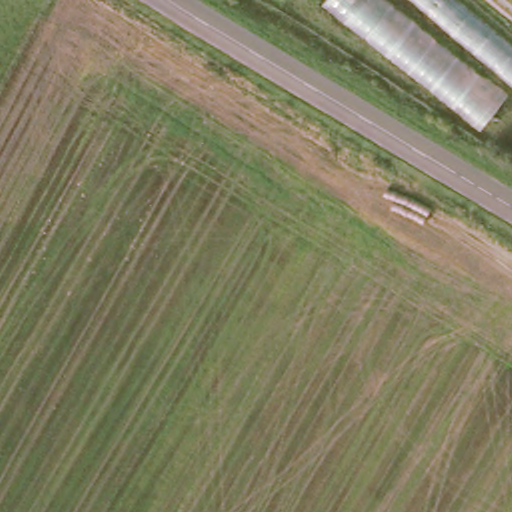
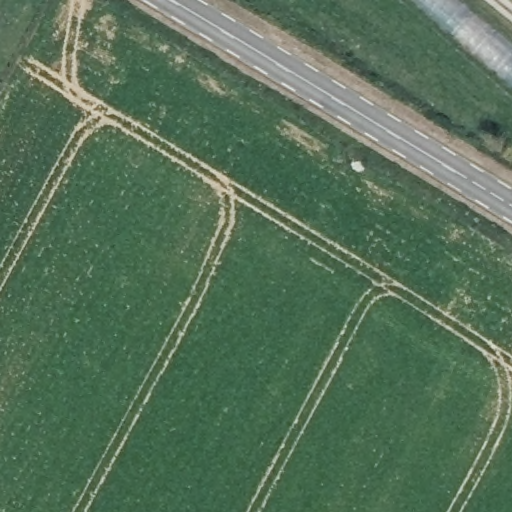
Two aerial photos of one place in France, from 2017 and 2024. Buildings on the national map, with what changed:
demolished [(512,103),(512,108),(493,131),(330,4),(333,0),(387,0),(512,103)]
unchanged [(467,0),(512,38),(512,81),(412,0),(467,0)]

